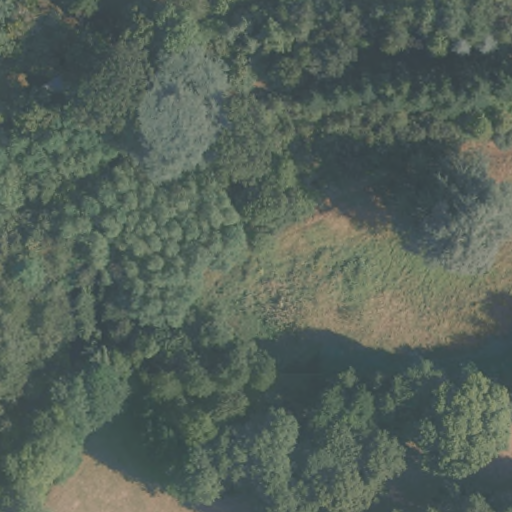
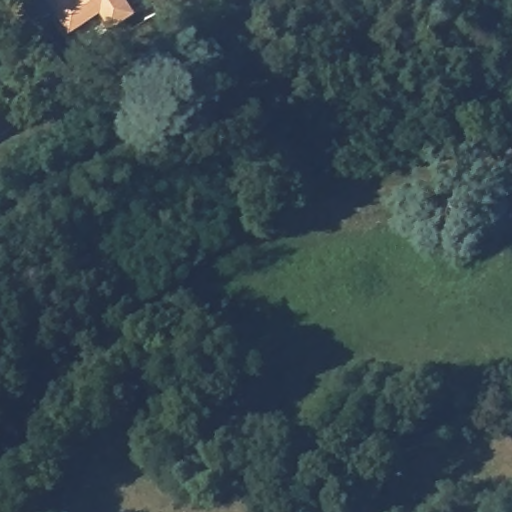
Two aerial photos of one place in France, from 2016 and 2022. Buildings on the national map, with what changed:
new [(47,19),(36,3),(41,0),(124,0),(136,19),(112,34),(100,15),(69,36),(54,14),(47,19)]
unchanged [(69,71),(74,76),(77,80),(65,87),(60,78),(69,71)]

